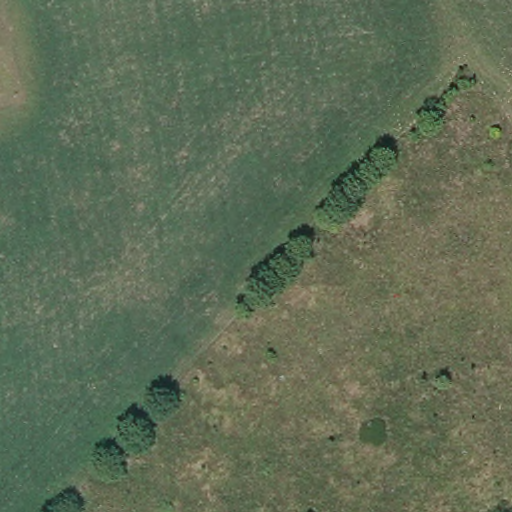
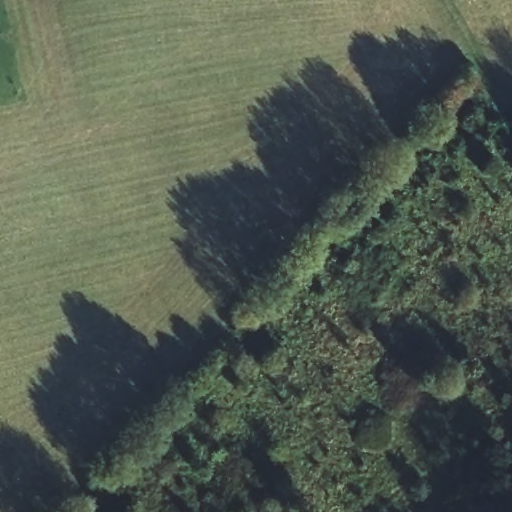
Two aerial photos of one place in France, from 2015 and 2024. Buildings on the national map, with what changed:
[]

